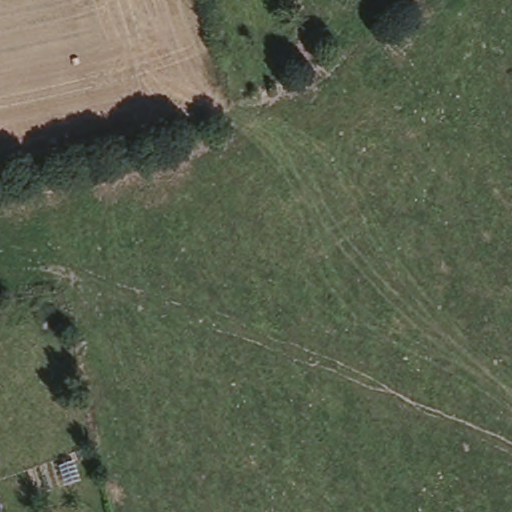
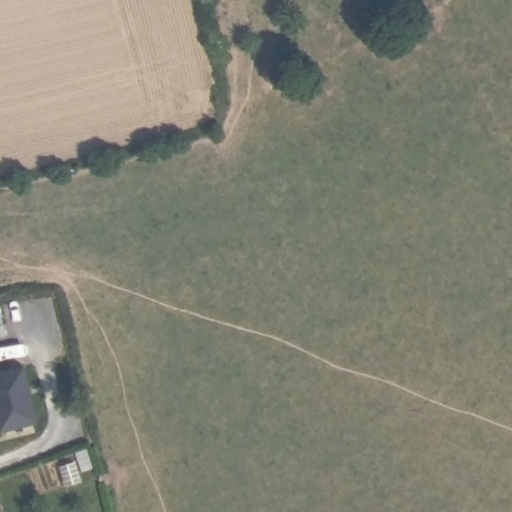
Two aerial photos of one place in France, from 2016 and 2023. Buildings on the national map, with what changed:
new [(38,429),(0,438),(0,376),(25,371),(38,429)]

